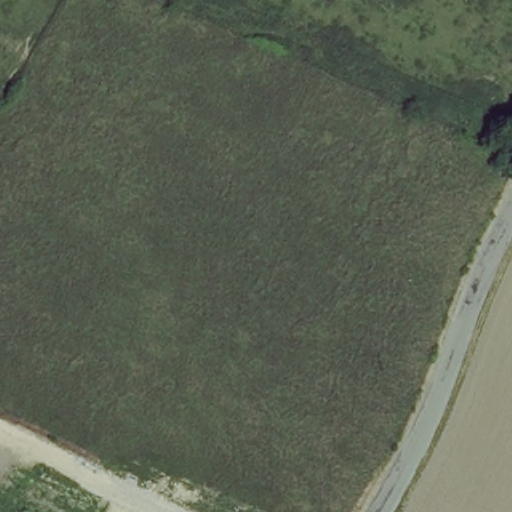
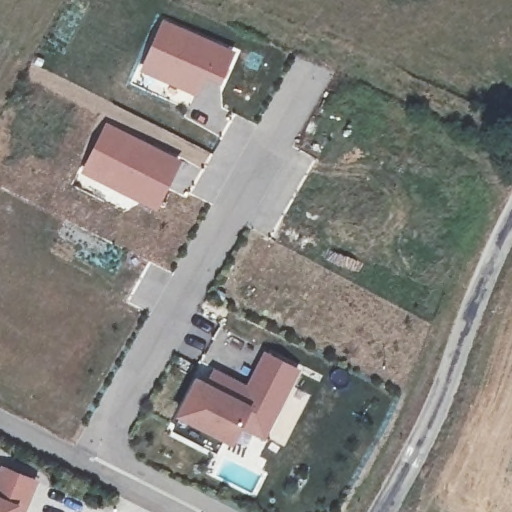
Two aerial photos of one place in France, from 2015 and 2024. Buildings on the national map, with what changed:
new [(204,73),(197,88),(144,66),(163,22),(231,54),(220,79),(204,73)]
new [(85,171),(107,125),(179,163),(156,206),(85,171)]
new [(193,379),(206,385),(212,369),(250,385),(266,356),(294,371),(274,413),(266,410),(254,433),(238,425),(229,441),(222,437),(214,452),(186,439),(189,433),(173,426),(193,379)]
new [(6,466),(39,479),(27,508),(20,505),(17,512),(0,512),(0,481),(6,466)]

